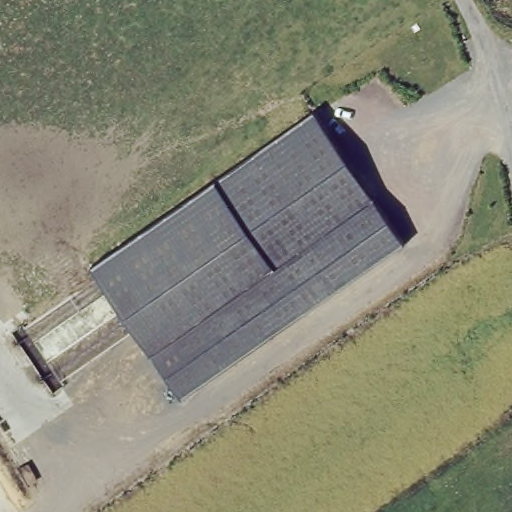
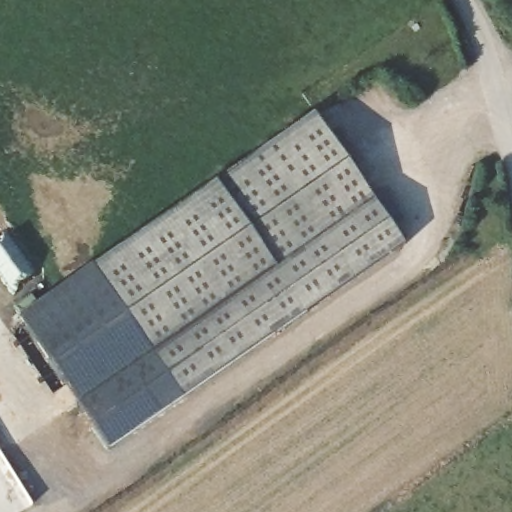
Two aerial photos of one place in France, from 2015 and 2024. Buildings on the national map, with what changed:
unchanged [(403,246),(180,400),(92,269),(314,115),(403,246)]
new [(180,400),(109,450),(17,317),(92,269),(180,400)]

